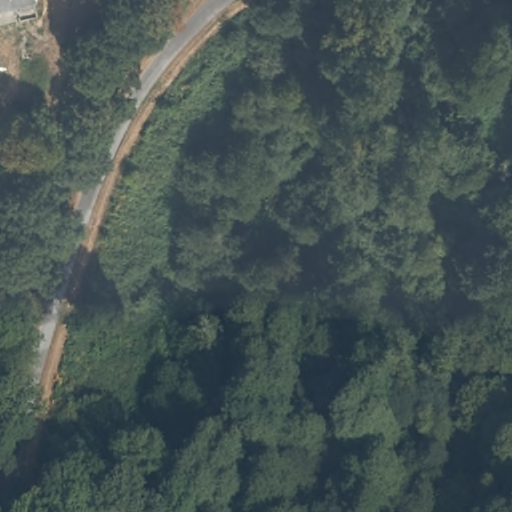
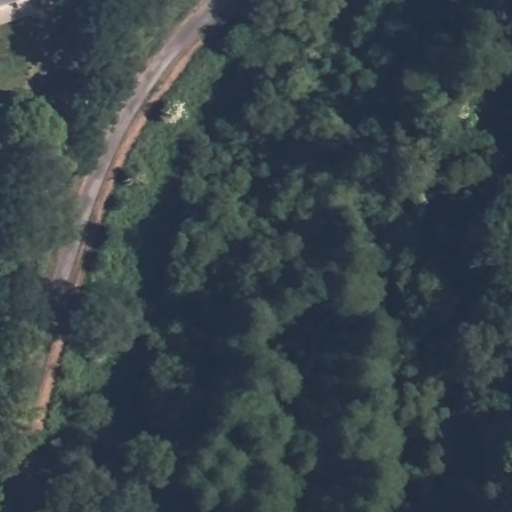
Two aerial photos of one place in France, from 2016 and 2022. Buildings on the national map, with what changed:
unchanged [(26,0),(0,9),(0,0),(26,0)]

